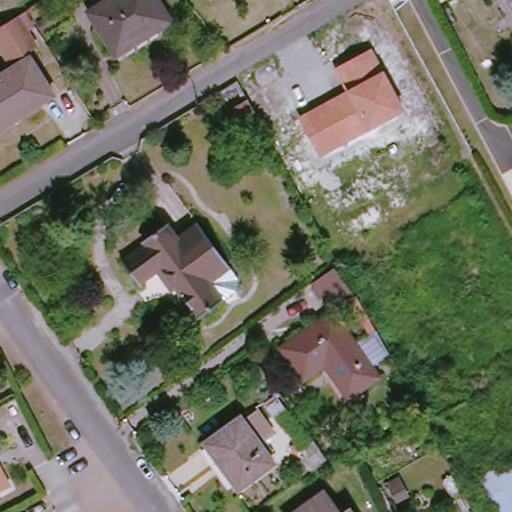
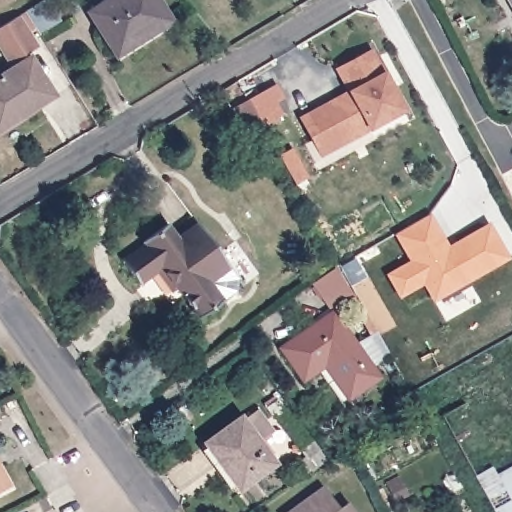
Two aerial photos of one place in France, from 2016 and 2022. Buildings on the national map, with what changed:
unchanged [(136,51),(131,44),(117,53),(94,17),(121,0),(158,0),(175,26),(136,51)]
unchanged [(508,0),(512,0),(512,7),(508,0)]
unchanged [(0,30),(21,16),(40,46),(15,62),(0,39),(0,30)]
unchanged [(404,110),(320,156),(297,117),(344,91),(332,69),(370,48),(404,110)]
unchanged [(0,133),(0,81),(35,58),(59,96),(0,133)]
unchanged [(250,103),(264,130),(242,142),(227,115),(250,103)]
new [(449,244),(490,223),(510,259),(434,302),(424,286),(400,297),(387,275),(410,261),(395,235),(430,215),(449,244)]
unchanged [(214,287),(227,306),(202,322),(167,270),(143,287),(127,264),(150,248),(148,244),(172,228),(183,243),(204,229),(235,273),(214,287)]
unchanged [(339,273),(359,302),(345,312),(335,298),(327,303),(317,289),(339,273)]
unchanged [(353,403),(330,369),(309,384),(287,352),(338,317),(383,382),(353,403)]
unchanged [(273,409),(283,402),(289,409),(279,417),(273,409)]
unchanged [(210,443),(245,418),(247,421),(262,410),(278,433),(264,443),(279,464),(244,490),(210,443)]
unchanged [(0,493),(0,467),(10,487),(0,493)]
unchanged [(482,477),(499,468),(504,476),(512,492),(512,512),(501,512),(482,477)]
unchanged [(504,476),(512,471),(512,492),(504,476)]
unchanged [(330,497),(341,512),(309,512),(330,497)]

